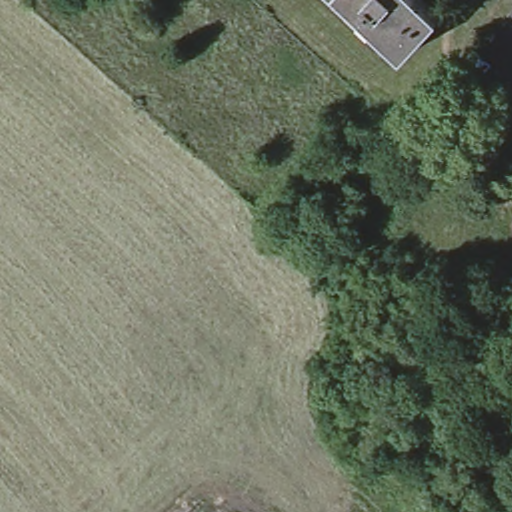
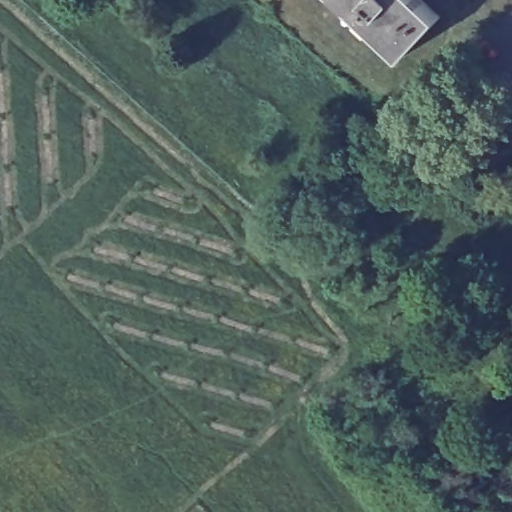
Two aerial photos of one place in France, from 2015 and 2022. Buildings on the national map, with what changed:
unchanged [(406,57),(344,0),(422,0),(442,19),(406,57)]

